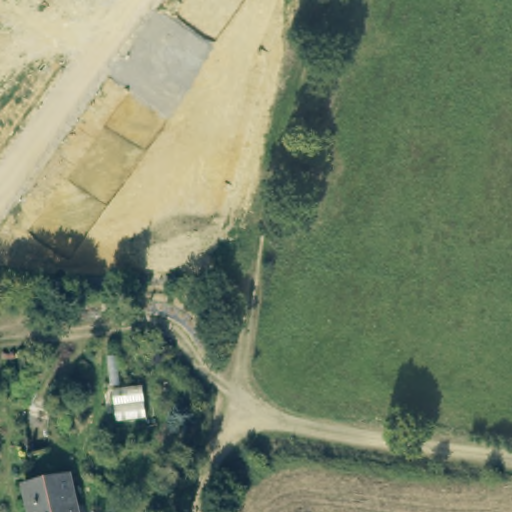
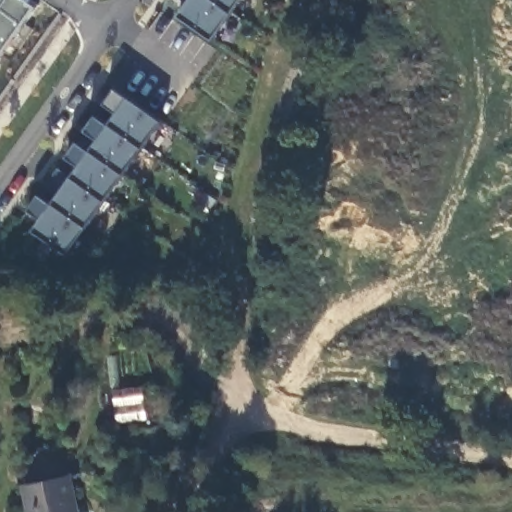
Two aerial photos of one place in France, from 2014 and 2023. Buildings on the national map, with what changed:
new [(39,5),(0,59),(0,0),(32,0),(39,5)]
new [(180,15),(188,2),(184,0),(241,0),(213,39),(180,15)]
new [(35,230),(42,218),(30,210),(40,194),(53,204),(61,190),(49,183),(59,168),(72,176),(80,165),(68,156),(78,141),(91,150),(99,140),(85,130),(96,115),(110,123),(118,111),(105,103),(116,88),(129,96),(164,121),(67,254),(35,230)]
unchanged [(32,512),(26,482),(74,472),(82,512),(32,512)]

